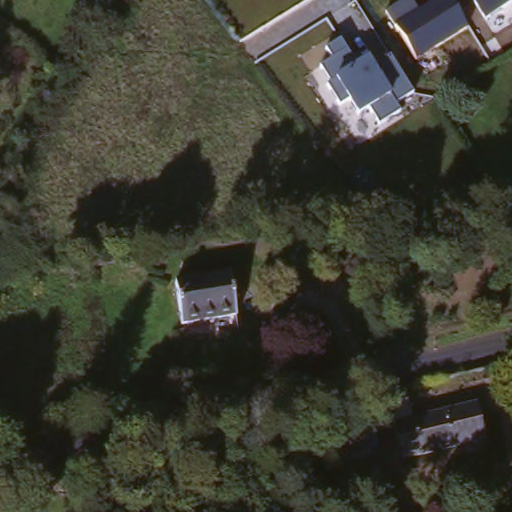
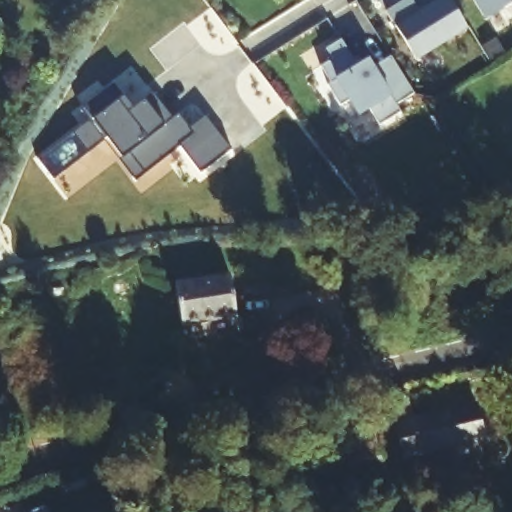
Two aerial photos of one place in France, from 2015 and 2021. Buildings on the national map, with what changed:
unchanged [(419,59),(387,13),(406,0),(410,0),(419,12),(436,0),(450,0),(468,28),(419,59)]
unchanged [(486,21),(474,0),(512,0),(512,3),(486,21)]
unchanged [(398,104),(403,113),(379,127),(369,111),(357,118),(348,104),(341,108),(328,86),(331,83),(321,67),(333,59),(326,50),(341,41),(356,65),(368,58),(374,65),(389,55),(414,95),(398,104)]
new [(87,119),(79,110),(113,86),(123,96),(133,108),(142,101),(151,94),(172,119),(178,115),(189,129),(204,118),(229,150),(201,173),(181,147),(135,182),(118,160),(122,157),(106,137),(53,179),(37,161),(87,119)]
unchanged [(180,328),(174,283),(234,276),(241,320),(180,328)]
unchanged [(401,459),(394,425),(478,404),(484,438),(401,459)]

